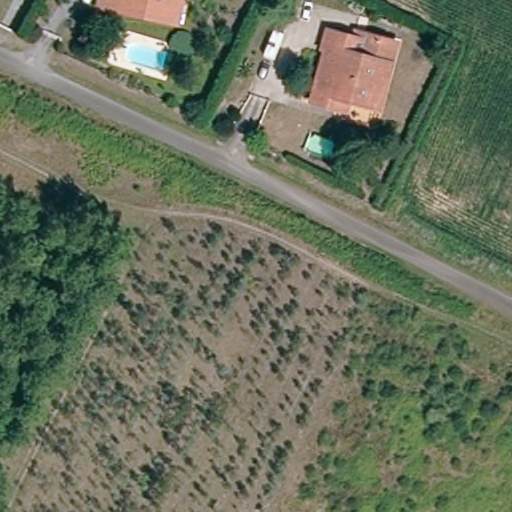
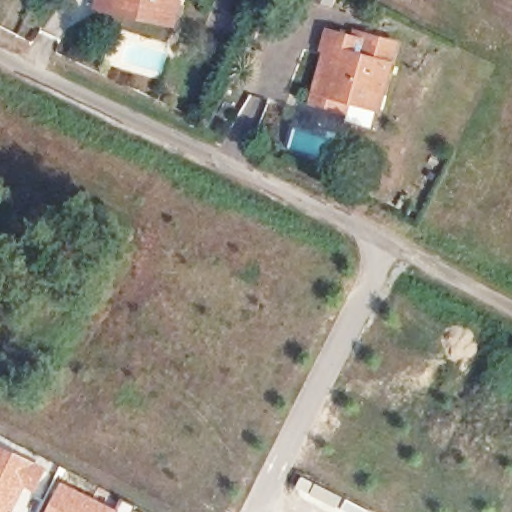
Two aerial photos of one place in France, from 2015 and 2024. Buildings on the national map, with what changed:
unchanged [(97,0),(185,0),(183,12),(135,4),(125,22),(113,20),(94,17),(97,0)]
unchanged [(180,32),(125,22),(135,4),(183,12),(180,32)]
unchanged [(316,108),(329,55),(319,53),(322,40),(352,47),(355,40),(393,51),(387,73),(381,96),(377,112),(370,110),(350,105),(346,117),(334,114),(316,108)]
new [(46,466),(31,494),(26,492),(15,512),(0,512),(0,443),(46,466)]
new [(372,512),(343,512),(293,487),(301,475),(372,512)]
new [(118,510),(123,500),(135,506),(133,512),(44,512),(60,480),(118,510)]

